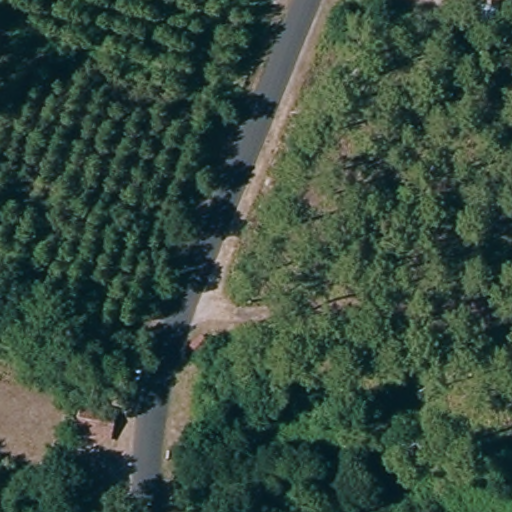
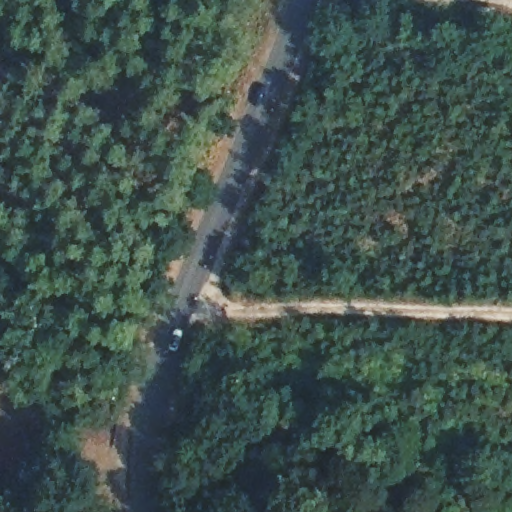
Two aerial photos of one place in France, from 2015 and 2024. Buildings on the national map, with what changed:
unchanged [(78,411),(108,418),(101,447),(71,440),(74,430),(75,423),(78,411)]

